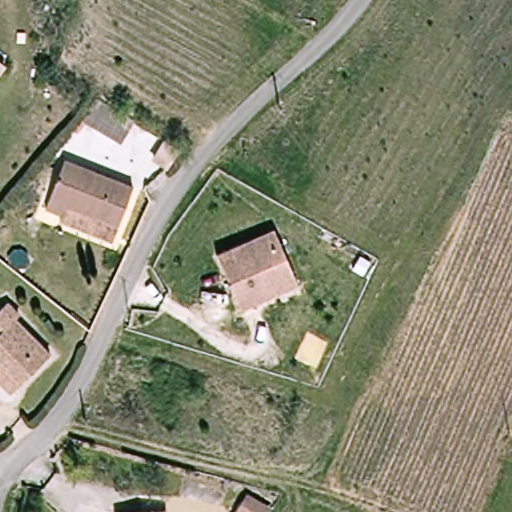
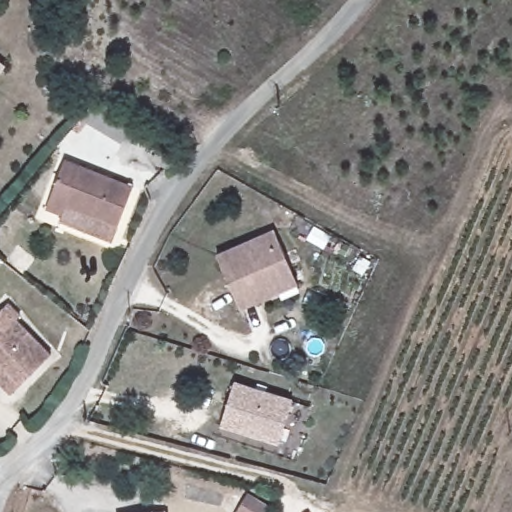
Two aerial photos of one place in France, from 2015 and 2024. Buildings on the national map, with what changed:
unchanged [(1,60),(0,61),(0,59),(1,60)]
unchanged [(99,95),(141,119),(127,143),(82,116),(99,95)]
unchanged [(61,222),(63,218),(45,211),(61,164),(131,188),(117,227),(113,239),(61,222)]
unchanged [(257,302),(242,309),(218,254),(275,229),(295,272),(300,284),(257,302)]
unchanged [(0,378),(0,311),(8,304),(20,317),(16,319),(49,356),(17,382),(10,389),(0,378)]
new [(234,383),(291,399),(279,442),(218,426),(234,383)]
unchanged [(267,512),(233,512),(245,493),(270,506),(267,512)]
unchanged [(121,509),(167,512),(121,512),(121,509)]

